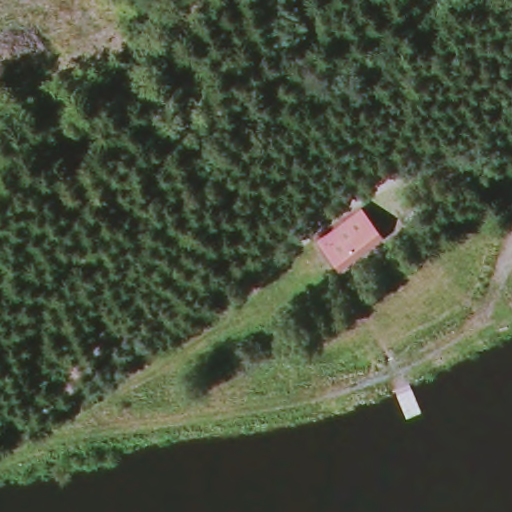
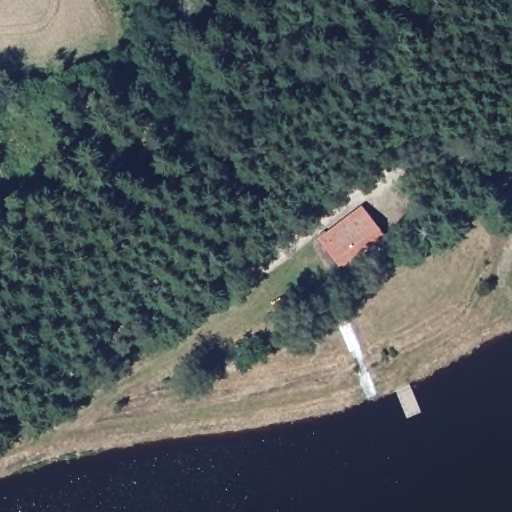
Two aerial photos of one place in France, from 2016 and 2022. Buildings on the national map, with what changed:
unchanged [(384,236),(341,269),(319,240),(362,206),(384,236)]

